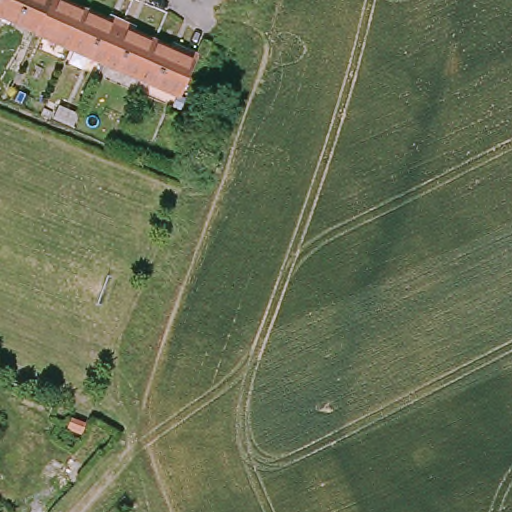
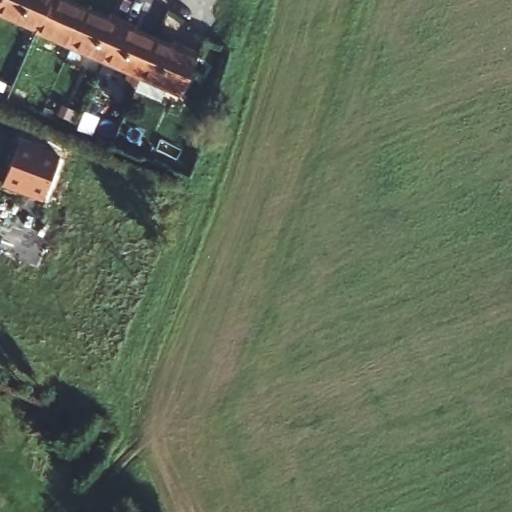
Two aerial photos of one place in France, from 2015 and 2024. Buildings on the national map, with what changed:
unchanged [(0,0),(1,0),(0,1),(0,0)]
unchanged [(0,13),(0,1),(1,0),(51,0),(38,30),(0,13)]
unchanged [(71,46),(37,31),(38,30),(51,0),(66,0),(87,10),(71,46)]
unchanged [(115,22),(116,18),(123,21),(105,61),(71,46),(87,10),(115,22)]
unchanged [(128,23),(126,28),(156,40),(140,76),(105,61),(123,21),(128,23)]
unchanged [(177,49),(178,46),(200,55),(181,95),(140,76),(156,40),(177,49)]
unchanged [(3,96),(0,94),(0,79),(9,83),(3,96)]
unchanged [(60,105),(79,114),(73,125),(54,116),(60,105)]
unchanged [(53,111),(50,119),(40,115),(44,106),(53,111)]
unchanged [(92,119),(85,133),(76,128),(82,114),(92,119)]
new [(60,155),(43,201),(1,185),(20,138),(60,155)]

